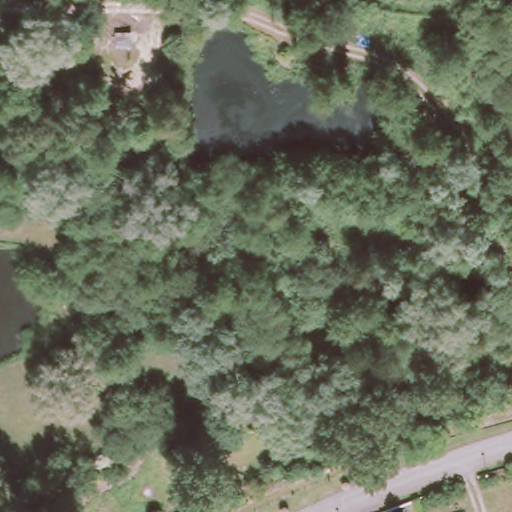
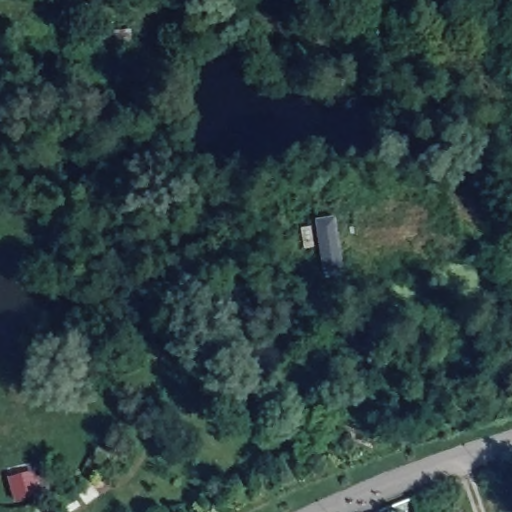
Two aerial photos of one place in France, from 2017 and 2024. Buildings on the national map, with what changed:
unchanged [(116,41),(138,40),(140,74),(117,73),(116,41)]

